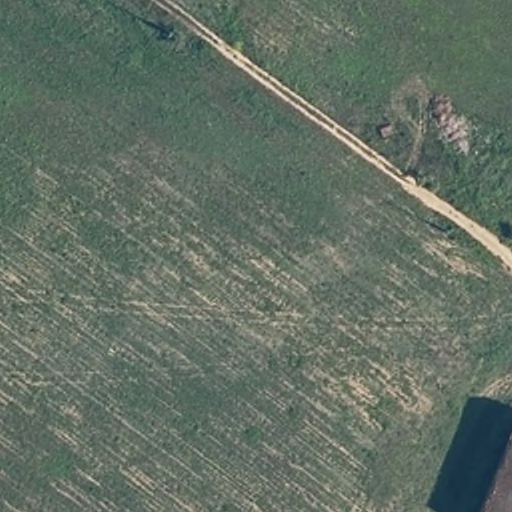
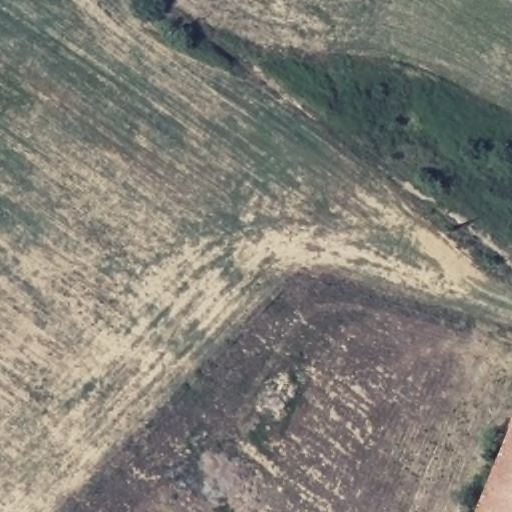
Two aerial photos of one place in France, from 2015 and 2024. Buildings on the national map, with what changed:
unchanged [(476,512),(512,420),(512,512),(476,512)]

